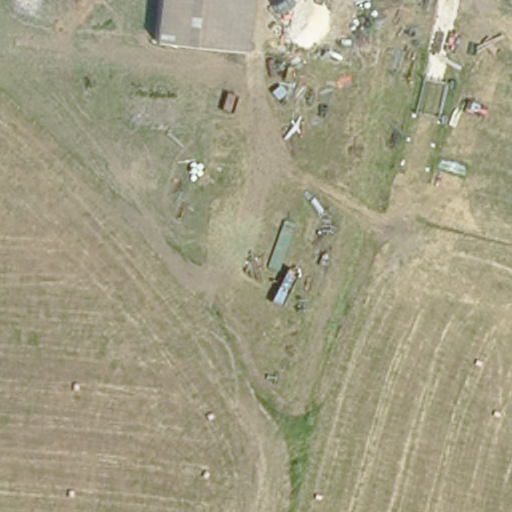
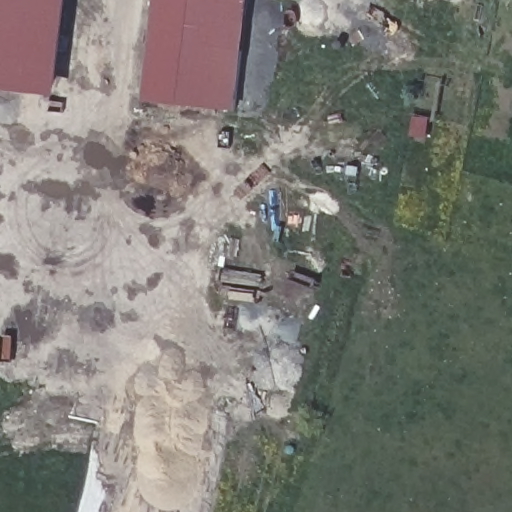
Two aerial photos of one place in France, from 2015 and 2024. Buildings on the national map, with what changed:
new [(0,0),(72,0),(60,94),(0,88),(0,0)]
new [(158,0),(252,0),(239,110),(146,99),(158,0)]

